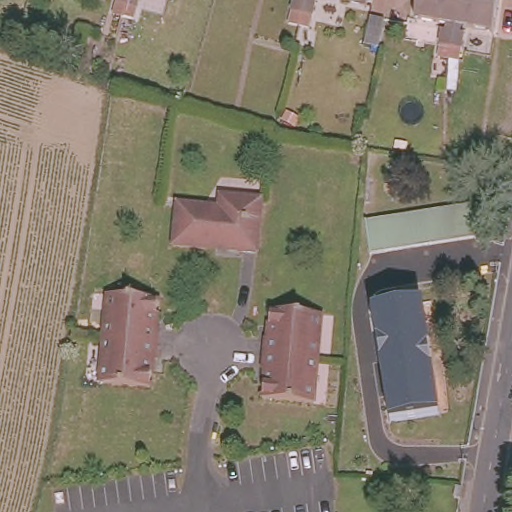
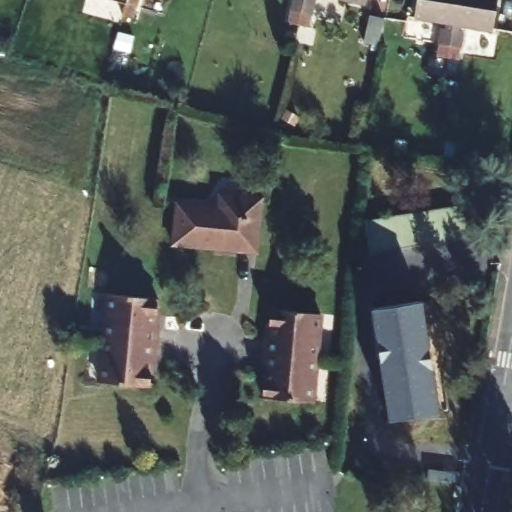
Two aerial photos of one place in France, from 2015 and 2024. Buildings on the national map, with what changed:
unchanged [(111,11),(114,0),(125,0),(121,15),(111,11)]
unchanged [(121,15),(125,0),(136,0),(131,17),(121,15)]
unchanged [(291,28),(297,1),(299,1),(300,0),(308,0),(301,30),(291,28)]
unchanged [(318,5),(312,32),(301,30),(308,0),(317,0),(316,5),(318,5)]
unchanged [(326,0),(371,0),(369,10),(326,0)]
unchanged [(437,60),(441,32),(444,33),(445,26),(413,21),(416,0),(456,0),(447,61),(437,60)]
unchanged [(459,28),(458,35),(462,35),(457,63),(447,61),(456,0),(496,0),(491,33),(459,28)]
unchanged [(219,204),(221,192),(262,196),(258,250),(226,247),(226,243),(207,240),(206,245),(174,241),(179,200),(219,204)]
unchanged [(385,217),(399,215),(414,213),(429,210),(444,208),(459,206),(474,203),(480,239),(465,242),(449,244),(434,246),(419,249),(404,251),(391,253),(374,255),(370,220),(385,217)]
unchanged [(157,298),(156,316),(153,316),(153,324),(160,325),(157,357),(149,356),(148,366),(151,366),(149,385),(99,381),(108,293),(157,298)]
unchanged [(419,301),(437,412),(389,419),(373,308),(419,301)]
unchanged [(312,399),(263,392),(264,377),(267,377),(268,367),(261,366),(263,350),(264,334),(271,335),(271,324),(269,323),(271,308),(308,312),(319,313),(315,356),(315,357),(312,399)]

